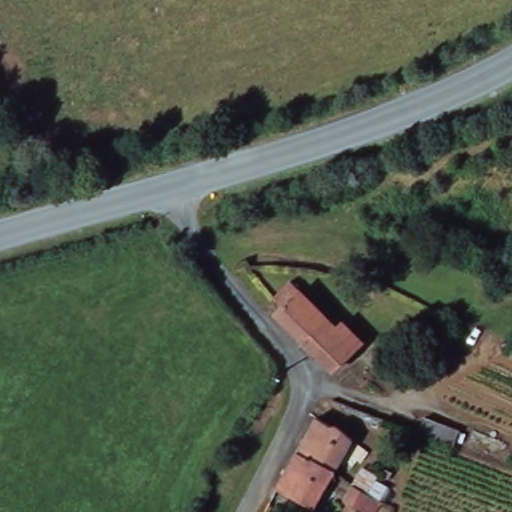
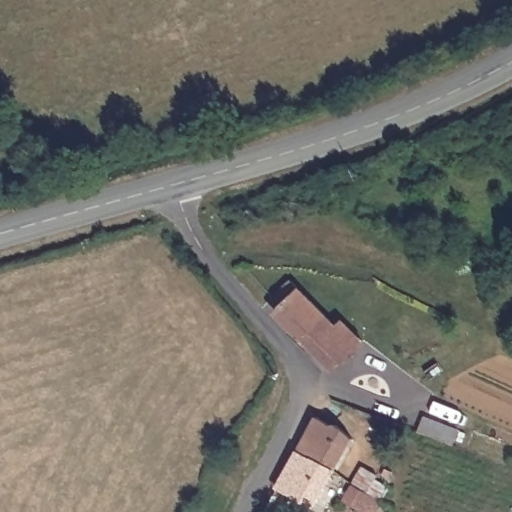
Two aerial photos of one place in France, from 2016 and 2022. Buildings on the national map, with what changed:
unchanged [(293,333),(296,330),(281,314),(287,308),(277,297),(295,280),(341,327),(347,322),(366,342),(337,371),(320,354),(317,356),(293,333)]
unchanged [(316,417),(331,426),(335,425),(352,439),(334,471),(296,452),(316,417)]
unchanged [(418,417),(453,431),(448,446),(413,432),(418,417)]
unchanged [(334,471),(312,508),(276,489),(296,452),(334,471)]
unchanged [(353,512),(354,510),(342,501),(353,485),(363,468),(375,475),(371,482),(384,490),(376,503),(378,504),(373,512),(353,512)]

